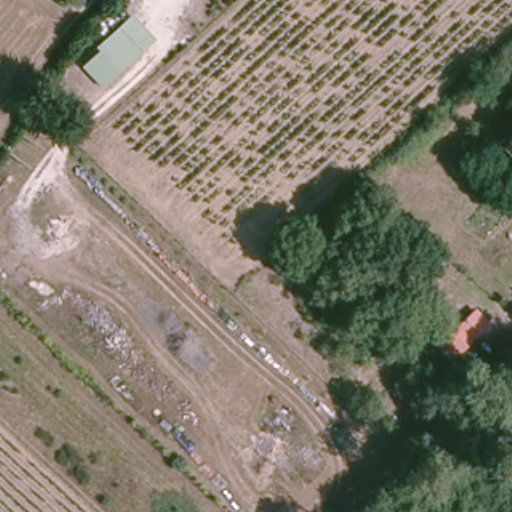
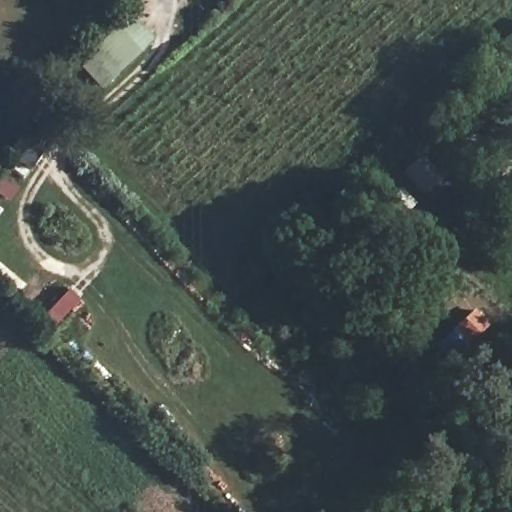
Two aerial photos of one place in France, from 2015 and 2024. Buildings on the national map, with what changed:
unchanged [(101,90),(81,69),(100,51),(96,46),(129,16),(152,40),(101,90)]
unchanged [(440,342),(477,306),(491,321),(453,356),(440,342)]

